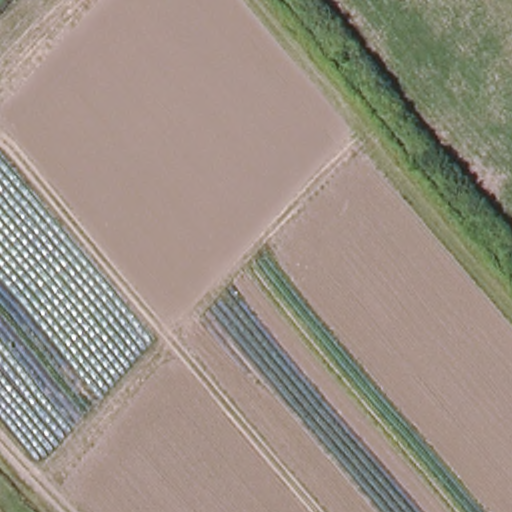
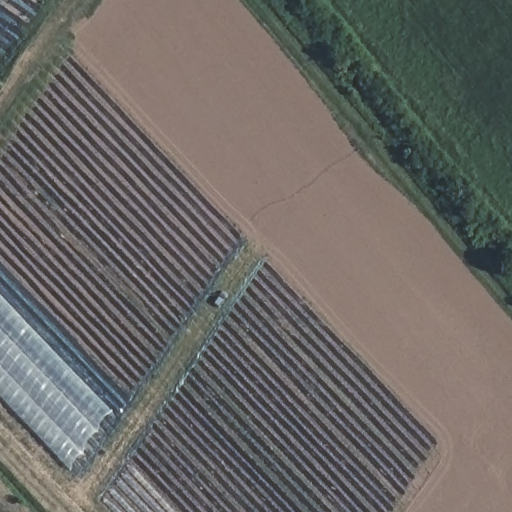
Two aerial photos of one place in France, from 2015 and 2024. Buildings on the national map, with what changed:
new [(114,411),(72,470),(0,395),(0,292),(114,411)]

